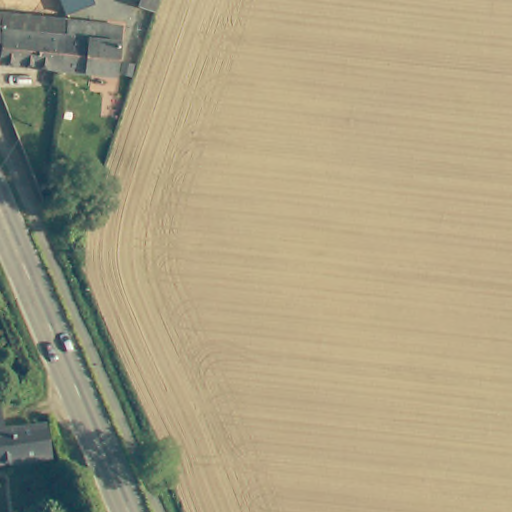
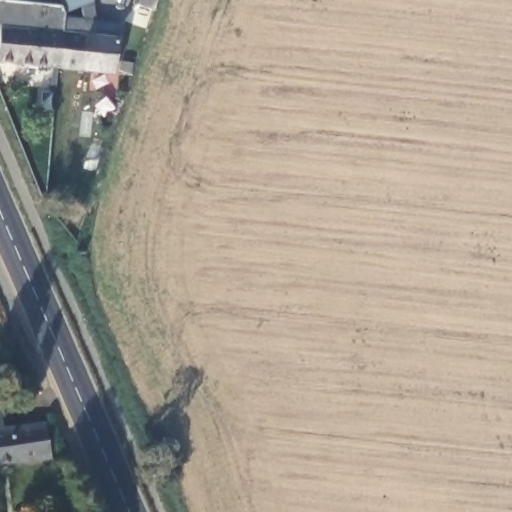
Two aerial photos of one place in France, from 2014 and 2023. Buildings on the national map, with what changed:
unchanged [(70,15),(64,0),(94,0),(102,20),(126,21),(127,21),(121,71),(120,70),(64,64),(70,15)]
unchanged [(160,8),(144,3),(145,0),(163,0),(160,8)]
unchanged [(4,57),(4,51),(0,51),(0,7),(70,15),(64,64),(4,57)]
unchanged [(46,454),(0,458),(0,405),(2,424),(42,420),(46,454)]

